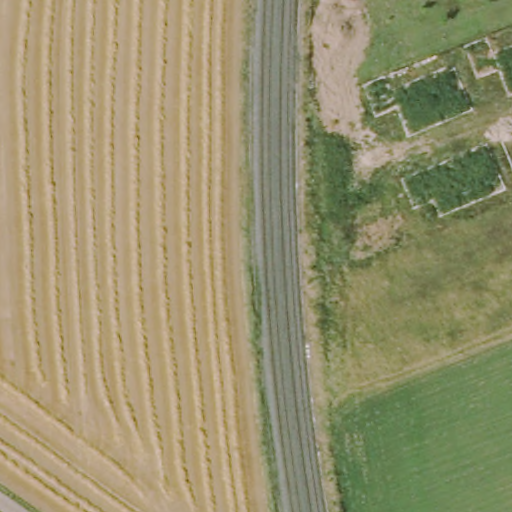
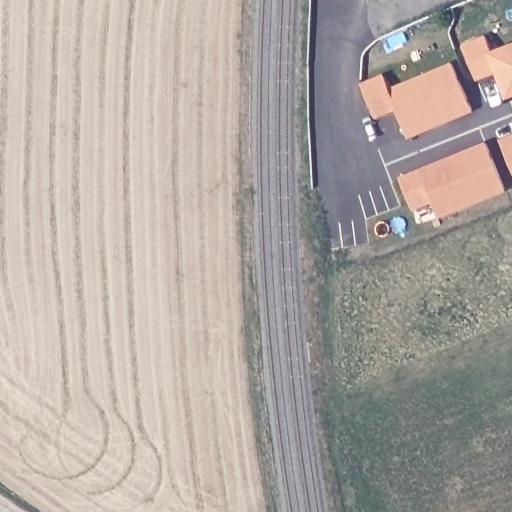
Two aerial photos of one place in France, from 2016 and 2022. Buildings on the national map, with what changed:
new [(488,43),(494,59),(512,51),(512,101),(501,75),(479,84),(466,51),(488,43)]
new [(384,82),(390,95),(455,69),(474,115),(409,142),(398,114),(376,122),(363,90),(384,82)]
new [(512,142),(512,166),(504,145),(512,142)]
new [(489,149),(508,194),(443,221),(436,205),(416,214),(404,184),(489,149)]

